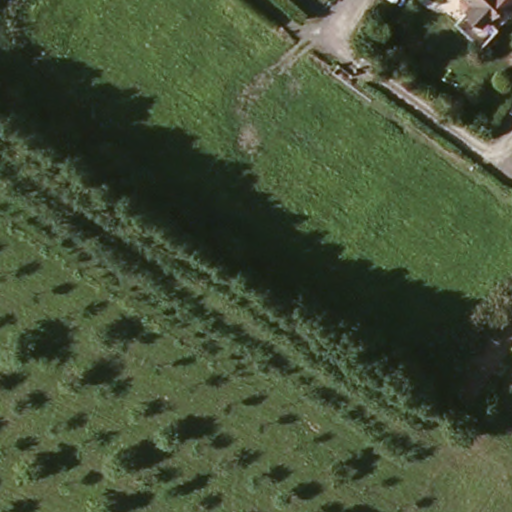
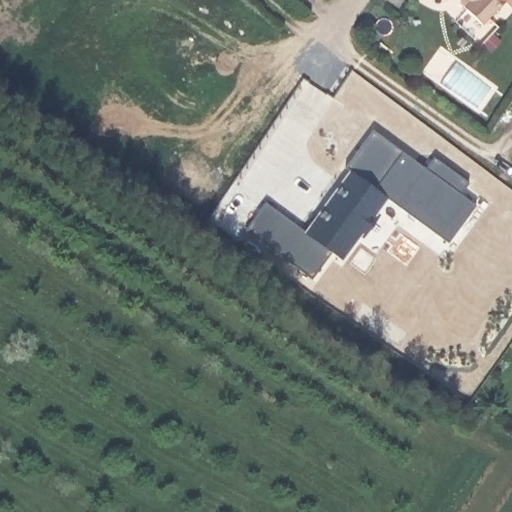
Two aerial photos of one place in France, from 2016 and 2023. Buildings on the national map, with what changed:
unchanged [(488,20),(469,0),(507,0),(488,20)]
new [(358,177),(347,169),(374,132),(426,170),(434,159),(468,183),(460,194),(475,205),(448,243),(389,199),(378,214),(343,258),(331,252),(312,277),(248,231),(267,206),(313,239),(358,177)]

